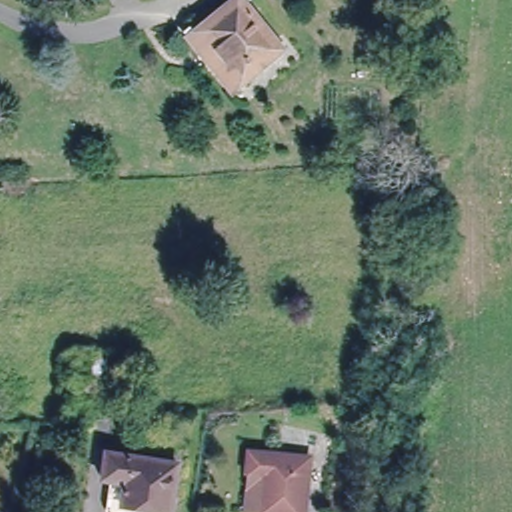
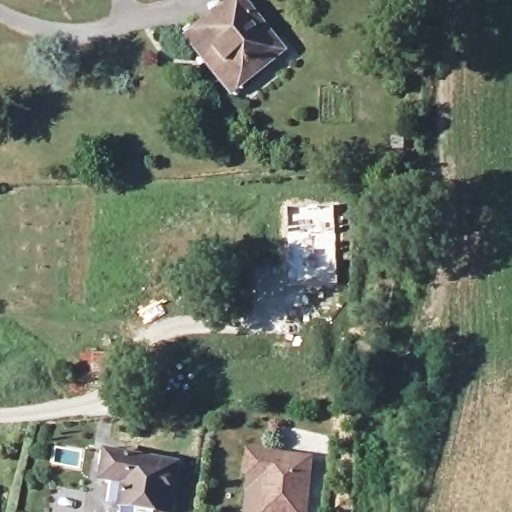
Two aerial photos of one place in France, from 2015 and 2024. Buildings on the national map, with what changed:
unchanged [(229,0),(249,0),(291,51),(239,92),(191,31),(229,0)]
unchanged [(119,350),(122,378),(102,378),(105,411),(83,412),(79,352),(119,350)]
unchanged [(119,472),(113,470),(120,445),(189,460),(176,512),(162,512),(129,504),(130,502),(113,498),(119,472)]
unchanged [(313,512),(268,512),(272,471),(258,470),(260,449),(319,454),(313,512)]

